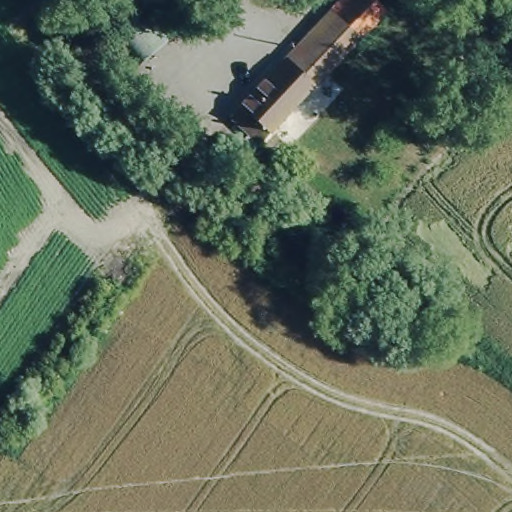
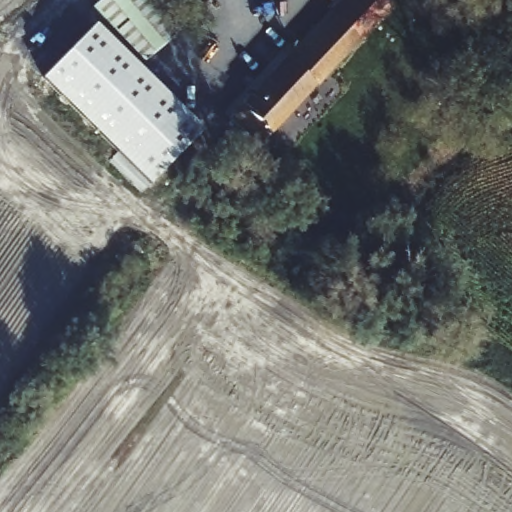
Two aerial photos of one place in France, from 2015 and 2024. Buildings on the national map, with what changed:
unchanged [(173,37),(136,63),(94,6),(100,0),(141,0),(173,37)]
unchanged [(229,122),(299,45),(337,0),(366,0),(380,13),(259,148),(229,122)]
new [(203,132),(151,185),(42,79),(96,25),(203,132)]
unchanged [(229,180),(242,165),(257,180),(244,193),(229,180)]

